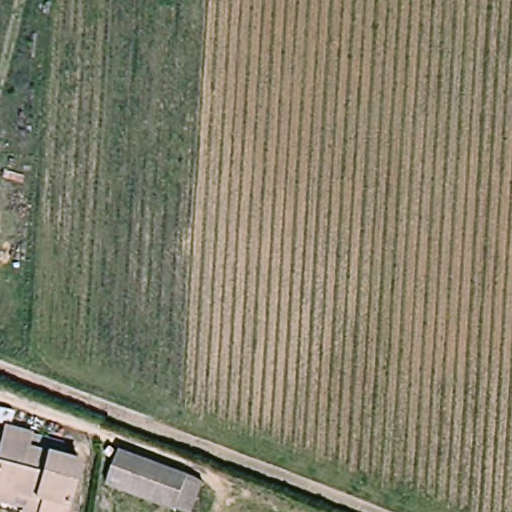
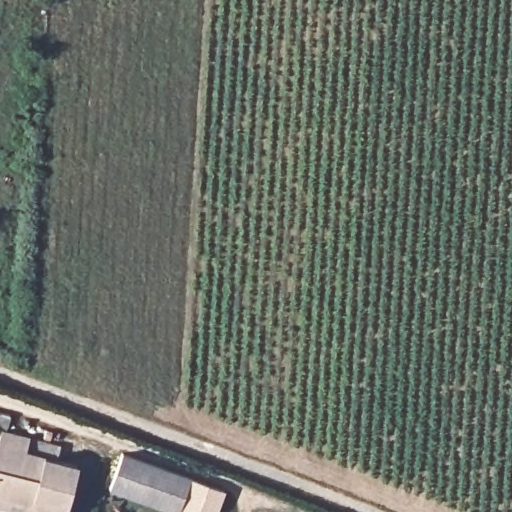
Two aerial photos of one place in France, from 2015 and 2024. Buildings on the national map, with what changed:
unchanged [(65,447),(62,460),(81,466),(71,512),(42,512),(43,508),(0,497),(0,467),(7,432),(65,447)]
unchanged [(118,486),(130,455),(190,481),(178,511),(118,486)]
new [(218,512),(178,512),(178,511),(190,481),(225,492),(218,512)]
unchanged [(43,508),(42,512),(3,512),(0,511),(0,497),(43,508)]

